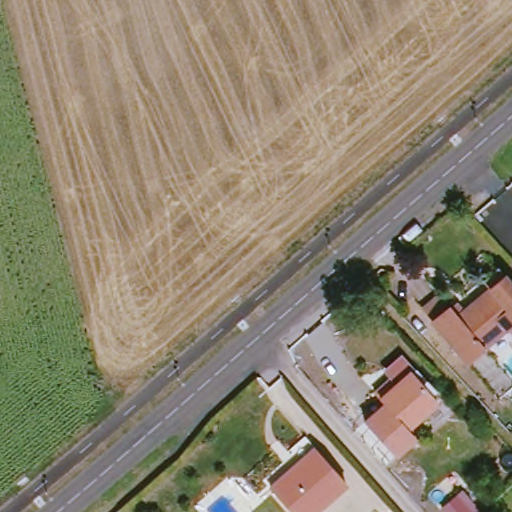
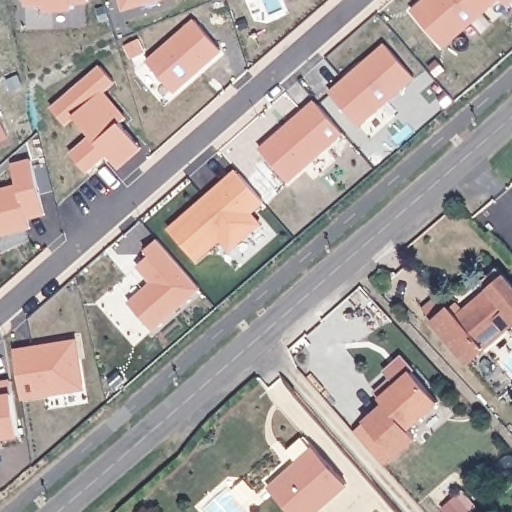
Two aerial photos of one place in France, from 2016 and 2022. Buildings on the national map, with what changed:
new [(72,11),(43,12),(43,6),(25,6),(25,0),(89,0),(90,4),(72,3),(72,11)]
new [(120,0),(165,0),(123,11),(120,0)]
new [(499,0),(445,48),(413,9),(424,0),(499,0)]
new [(507,0),(512,0),(512,2),(510,4),(507,0)]
new [(194,20),(222,51),(175,94),(147,61),(194,20)]
new [(331,91),(385,43),(416,78),(361,126),(331,91)]
new [(119,169),(108,155),(86,173),(71,153),(92,134),(76,117),(66,125),(52,109),(100,65),(114,83),(104,93),(125,119),(120,122),(141,148),(119,169)]
new [(316,101),(344,133),(288,180),(261,149),(316,101)]
new [(0,142),(0,119),(8,139),(0,142)]
new [(11,166),(28,162),(42,213),(25,218),(27,225),(0,233),(0,191),(17,187),(11,166)]
new [(236,169),(265,202),(255,213),(262,223),(231,252),(221,243),(198,263),(168,228),(236,169)]
new [(202,289),(155,332),(128,303),(150,283),(137,268),(150,255),(145,250),(158,239),(202,289)]
unchanged [(455,308),(463,317),(510,277),(512,278),(512,329),(511,330),(490,348),(512,375),(512,394),(503,401),(437,323),(455,308)]
new [(77,340),(80,359),(77,360),(82,389),(22,399),(15,351),(77,340)]
new [(379,374),(398,358),(411,373),(397,386),(392,380),(387,384),(379,374)]
unchanged [(392,380),(397,386),(411,373),(437,403),(407,429),(376,394),(392,380)]
new [(25,439),(0,442),(0,399),(0,386),(17,383),(25,439)]
new [(416,439),(396,456),(367,422),(386,405),(407,429),(416,439)]
unchanged [(305,471),(293,457),(310,442),(351,489),(325,512),(292,512),(277,496),(305,471)]
new [(442,509),(458,495),(473,512),(444,512),(442,509)]

